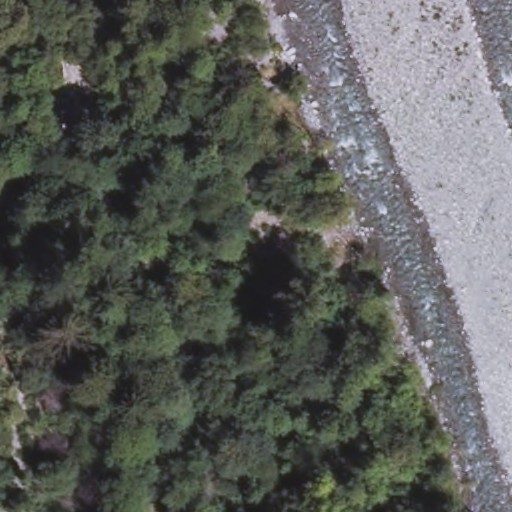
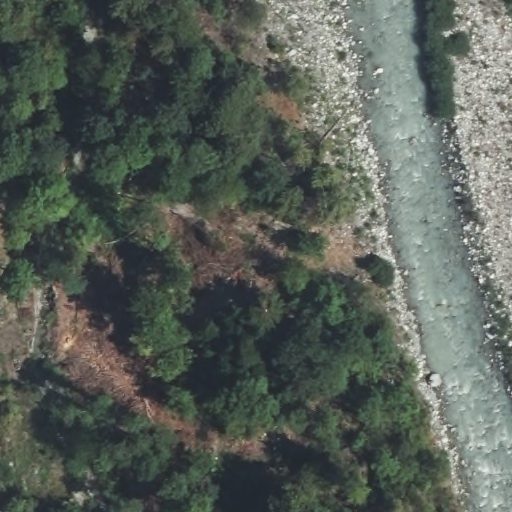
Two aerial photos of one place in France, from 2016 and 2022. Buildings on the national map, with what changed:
[]

